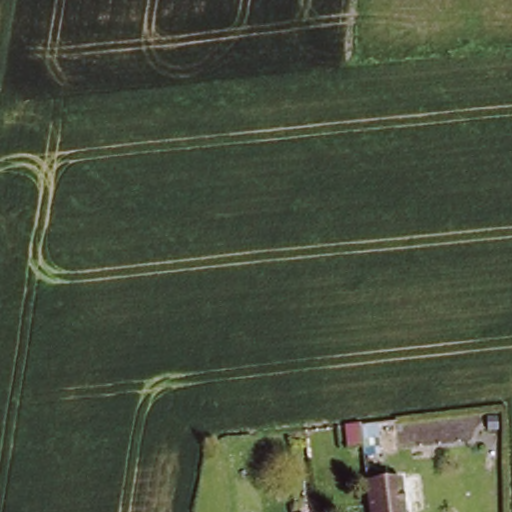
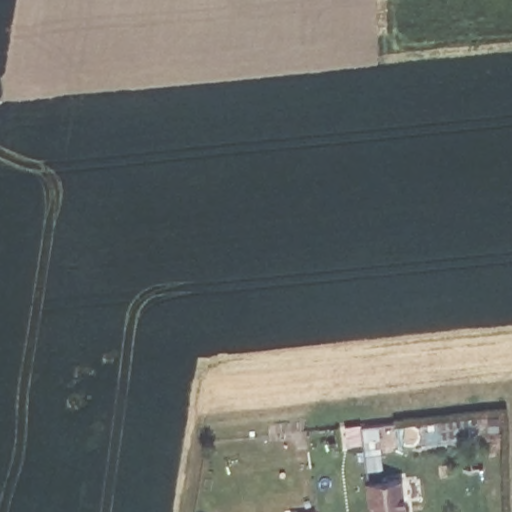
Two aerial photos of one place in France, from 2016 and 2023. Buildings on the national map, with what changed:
unchanged [(403,486),(406,512),(371,512),(369,491),(403,486)]

